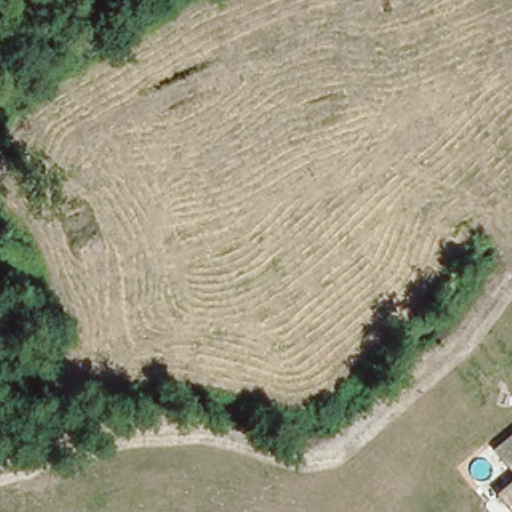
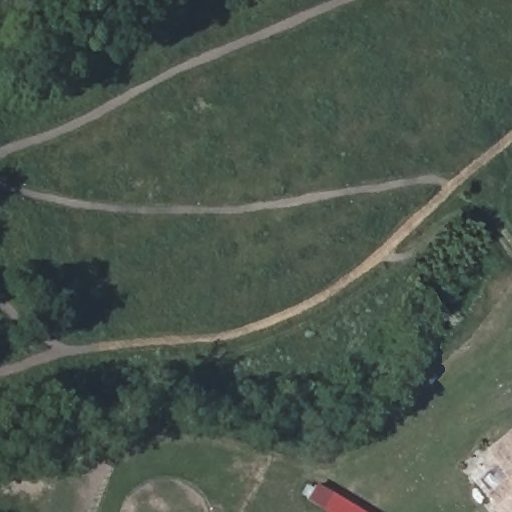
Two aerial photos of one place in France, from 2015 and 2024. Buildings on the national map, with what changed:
unchanged [(512,438),(512,469),(496,451),(512,438)]
new [(365,512),(325,512),(305,500),(315,483),(365,512)]
unchanged [(512,512),(499,498),(512,487),(512,512)]

